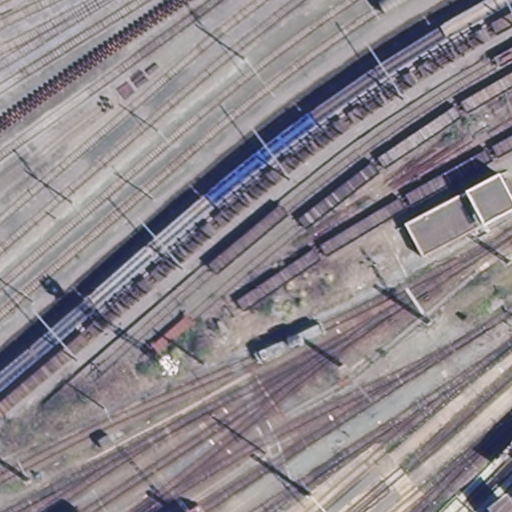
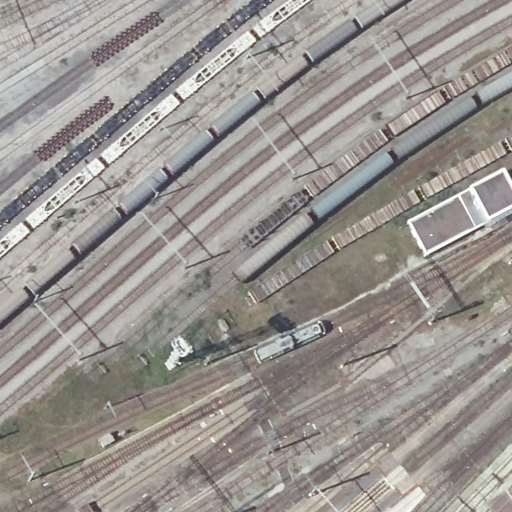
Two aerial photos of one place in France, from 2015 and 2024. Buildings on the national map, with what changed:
unchanged [(512,194),(512,214),(427,257),(411,224),(503,176),(512,194)]

